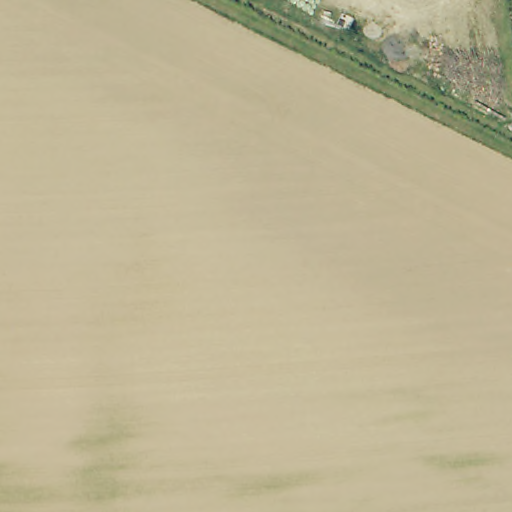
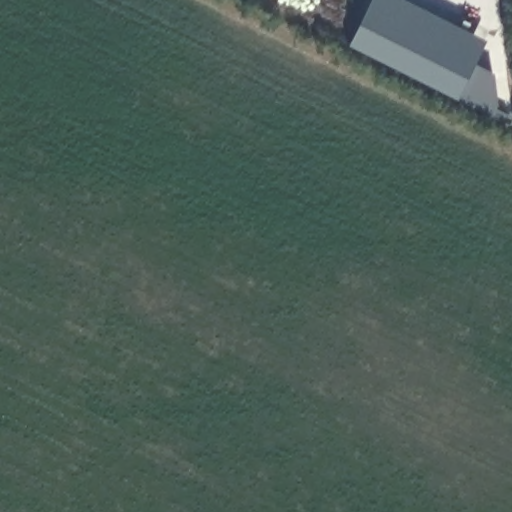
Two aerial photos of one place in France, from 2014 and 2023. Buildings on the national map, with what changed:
new [(456,101),(347,47),(370,0),(404,0),(485,41),(456,101)]

